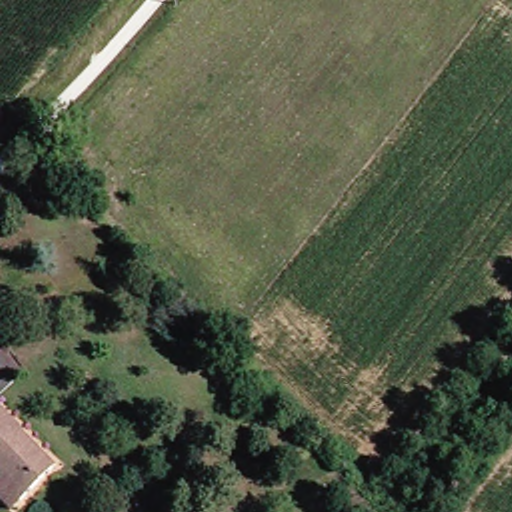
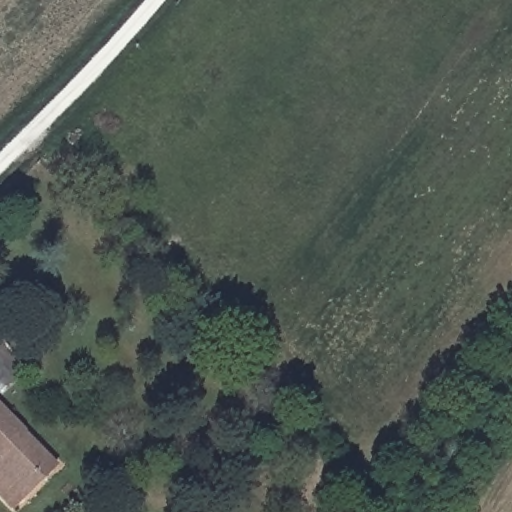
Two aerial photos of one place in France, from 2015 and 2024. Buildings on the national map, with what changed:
unchanged [(0,490),(0,474),(0,400),(24,425),(21,428),(55,463),(22,495),(15,502),(0,490)]

